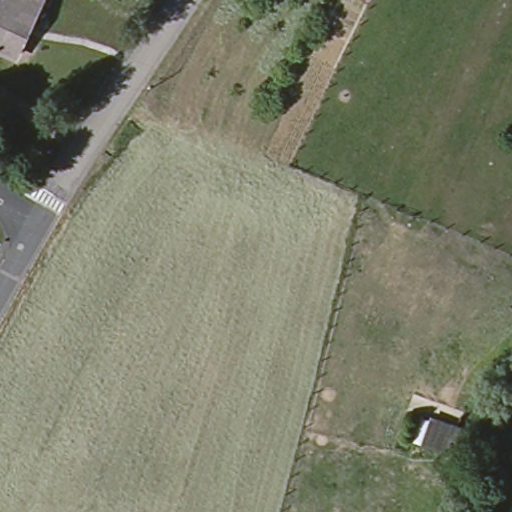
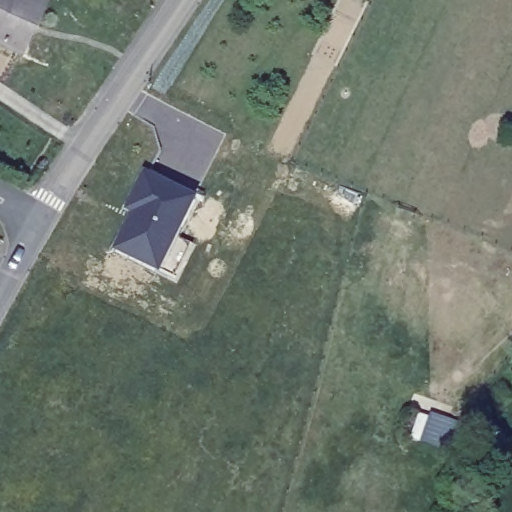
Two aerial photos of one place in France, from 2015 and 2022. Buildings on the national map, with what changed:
unchanged [(18,54),(0,45),(0,0),(38,0),(34,7),(25,28),(29,30),(18,54)]
new [(193,201),(175,238),(193,246),(176,281),(116,252),(136,214),(129,211),(146,178),(193,201)]
unchanged [(438,417),(433,444),(410,437),(419,412),(438,417)]

